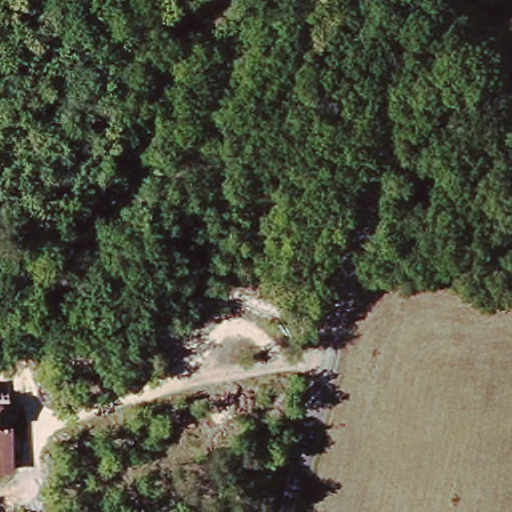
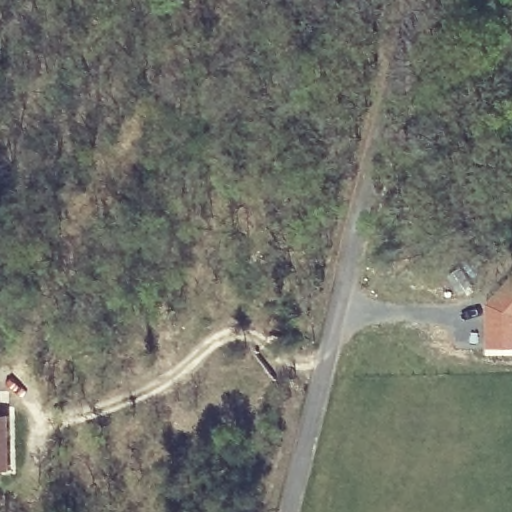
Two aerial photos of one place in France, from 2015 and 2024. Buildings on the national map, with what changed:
new [(512,280),(512,350),(485,351),(485,302),(512,280)]
unchanged [(4,397),(5,418),(12,420),(17,467),(0,469),(0,397),(4,397)]

